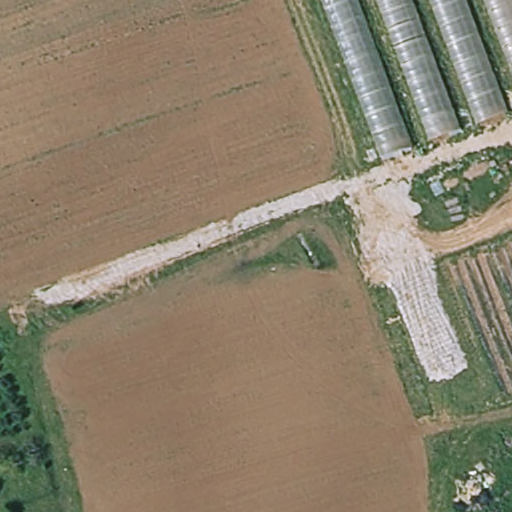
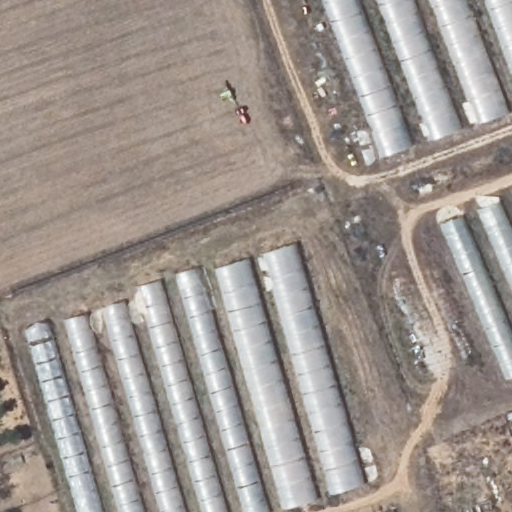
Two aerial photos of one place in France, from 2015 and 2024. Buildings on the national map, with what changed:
unchanged [(383,158),(323,0),(512,0),(512,112),(383,158)]
new [(439,224),(512,197),(512,379),(506,381),(439,224)]
new [(362,485),(334,495),(264,252),(294,243),(362,485)]
new [(247,259),(316,501),(285,510),(216,268),(247,259)]
new [(245,512),(176,274),(196,268),(267,512),(245,512)]
new [(225,512),(201,512),(138,286),(159,280),(225,512)]
new [(161,512),(102,307),(122,301),(182,512),(161,512)]
new [(142,512),(119,512),(64,320),(85,314),(142,512)]
new [(101,512),(79,512),(27,330),(47,324),(101,512)]
new [(492,512),(472,512),(458,463),(476,456),(492,512)]
new [(390,512),(391,511),(391,512),(390,512)]

